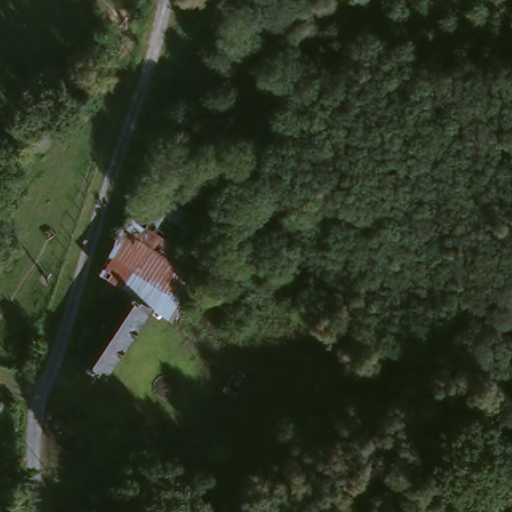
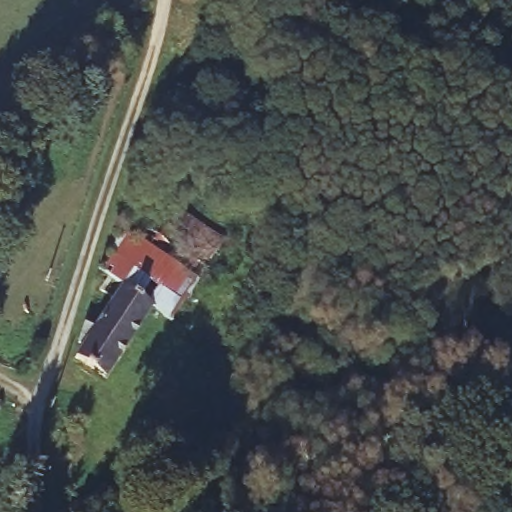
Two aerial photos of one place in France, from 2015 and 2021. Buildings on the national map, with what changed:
unchanged [(219,240),(169,328),(148,315),(115,291),(96,274),(151,193),(219,240)]
unchanged [(148,315),(107,381),(72,361),(115,291),(148,315)]
unchanged [(230,375),(241,383),(230,396),(220,389),(230,375)]
unchanged [(130,512),(69,512),(66,506),(116,484),(130,512)]

